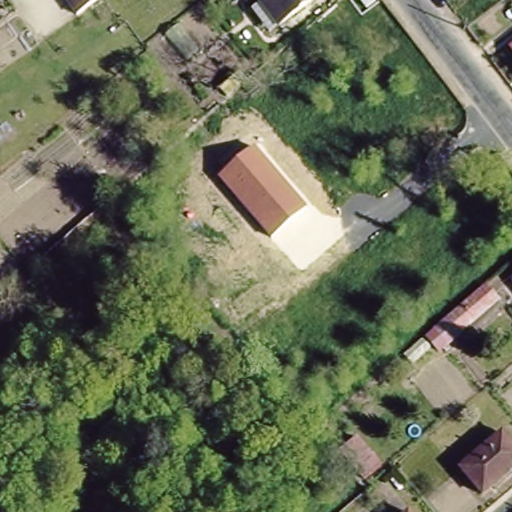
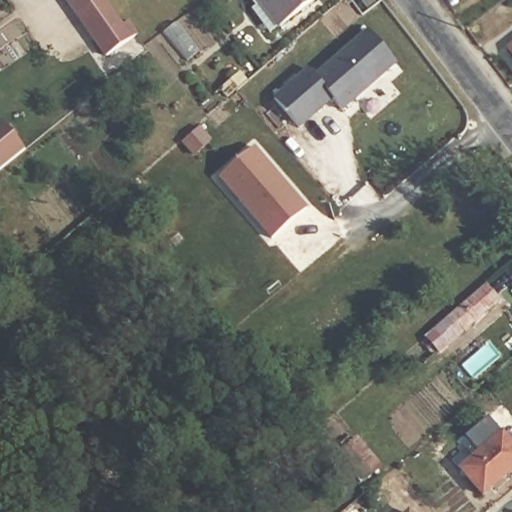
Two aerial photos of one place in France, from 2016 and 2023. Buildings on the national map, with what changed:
unchanged [(69,0),(94,0),(77,12),(69,0)]
new [(125,20),(131,15),(140,28),(106,54),(77,12),(94,0),(112,0),(125,20)]
unchanged [(282,30),(260,0),(322,0),(282,30)]
new [(343,111),(333,101),(301,129),(272,99),(308,68),(315,76),(367,30),(396,63),(343,111)]
unchanged [(512,48),(512,51),(510,49),(512,48)]
new [(3,120),(26,150),(0,170),(0,123),(3,120)]
unchanged [(217,179),(254,146),(308,209),(270,239),(217,179)]
unchanged [(425,339),(484,284),(499,298),(441,355),(425,339)]
unchanged [(512,470),(481,495),(459,469),(500,433),(512,447),(512,470)]

